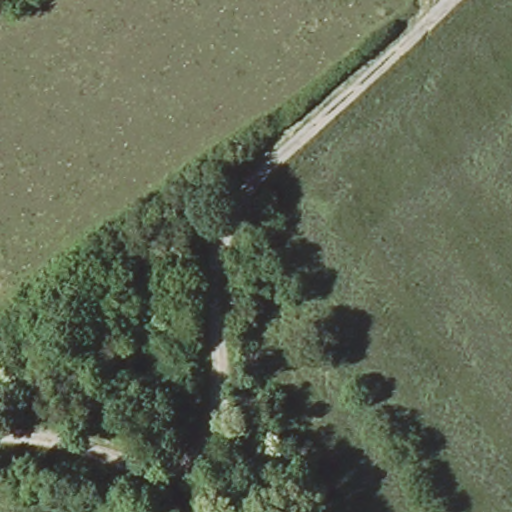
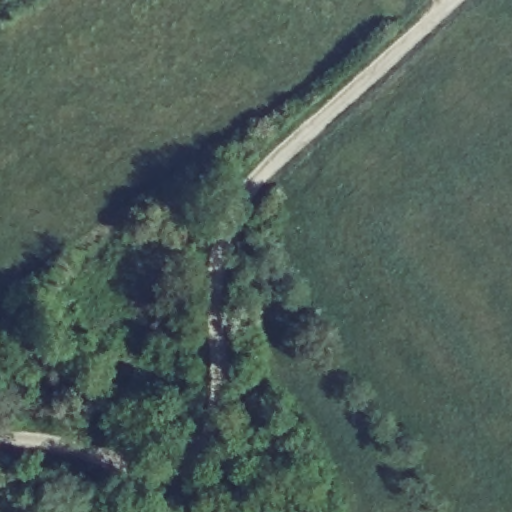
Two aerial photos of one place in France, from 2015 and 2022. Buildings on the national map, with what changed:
[]

